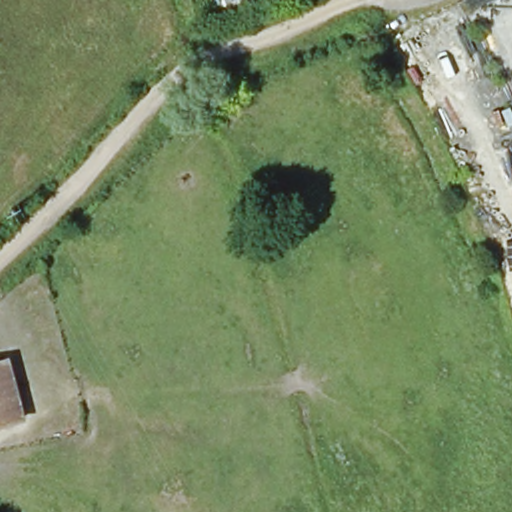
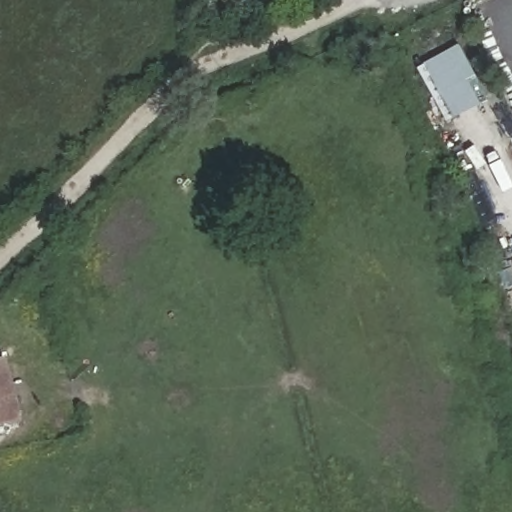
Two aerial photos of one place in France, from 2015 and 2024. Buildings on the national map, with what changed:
new [(418,67),(460,46),(488,101),(446,122),(418,67)]
unchanged [(5,359),(19,418),(0,423),(0,361),(5,359)]

